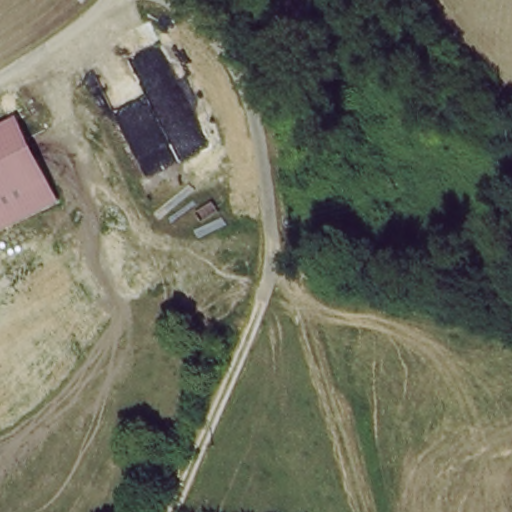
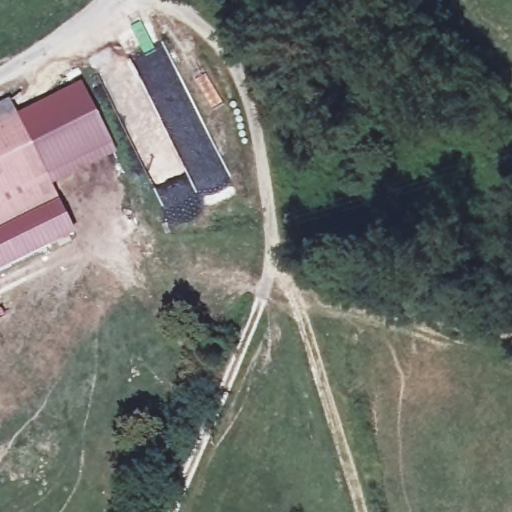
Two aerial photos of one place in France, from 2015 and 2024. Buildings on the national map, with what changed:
new [(51,187),(20,124),(17,117),(82,83),(117,154),(51,187)]
new [(20,124),(0,134),(0,104),(9,100),(20,124)]
unchanged [(61,207),(0,236),(0,134),(20,124),(61,207)]
new [(75,235),(0,271),(0,236),(61,207),(75,235)]

